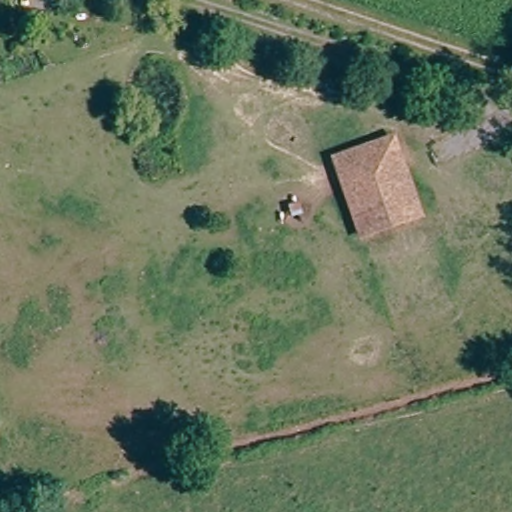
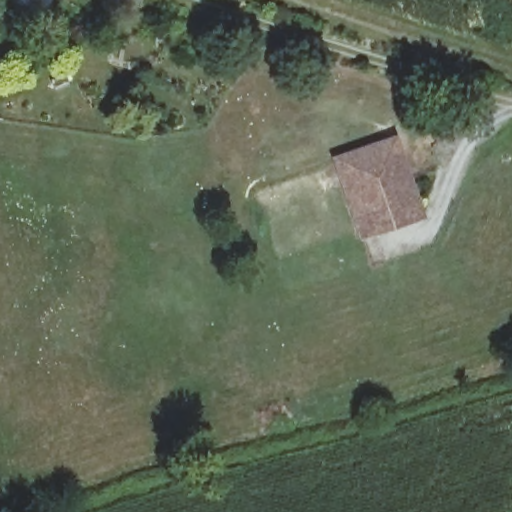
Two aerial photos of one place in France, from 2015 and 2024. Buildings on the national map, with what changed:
unchanged [(424,215),(365,236),(338,158),(397,138),(424,215)]

